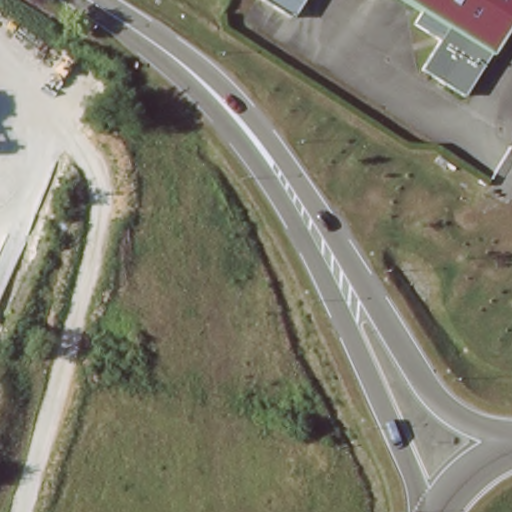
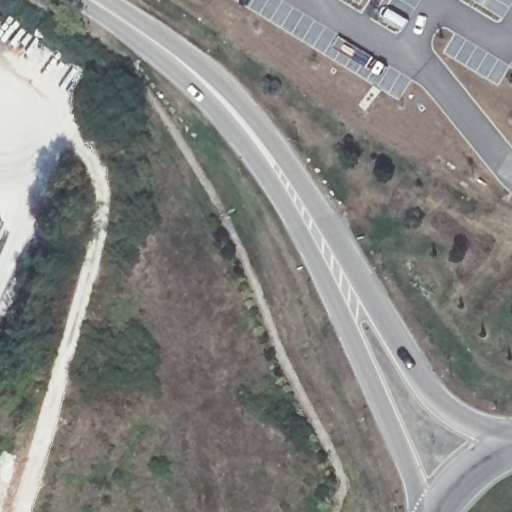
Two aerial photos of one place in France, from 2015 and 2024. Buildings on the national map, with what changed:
demolished [(260,0),(305,0),(294,19),(260,0)]
demolished [(463,92),(419,71),(438,39),(411,25),(419,10),(403,0),(512,0),(512,16),(490,52),(463,92)]

